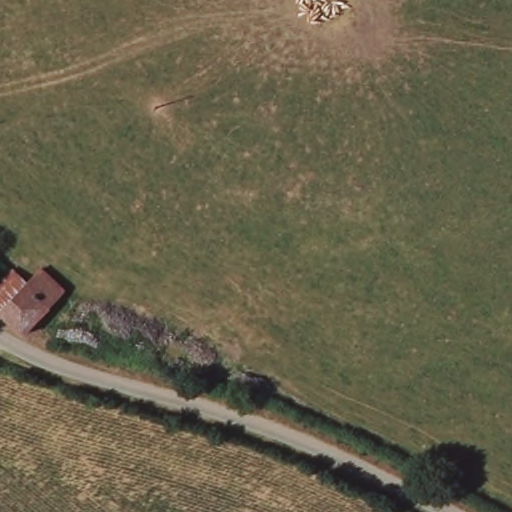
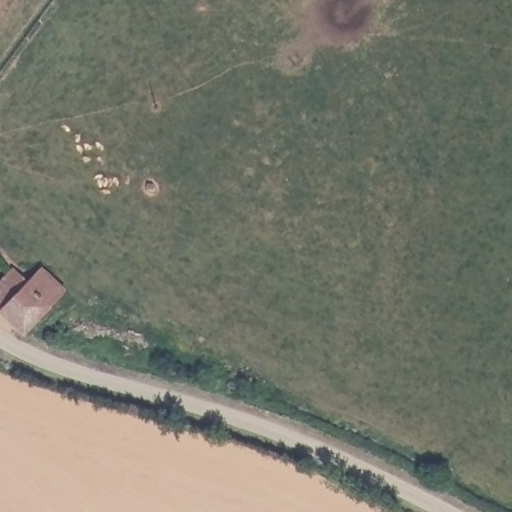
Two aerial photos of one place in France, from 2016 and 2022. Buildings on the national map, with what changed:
unchanged [(16,321),(0,309),(0,287),(21,264),(30,255),(53,278),(16,321)]

